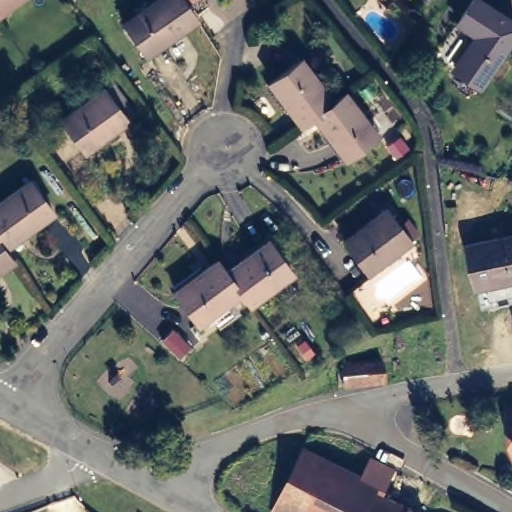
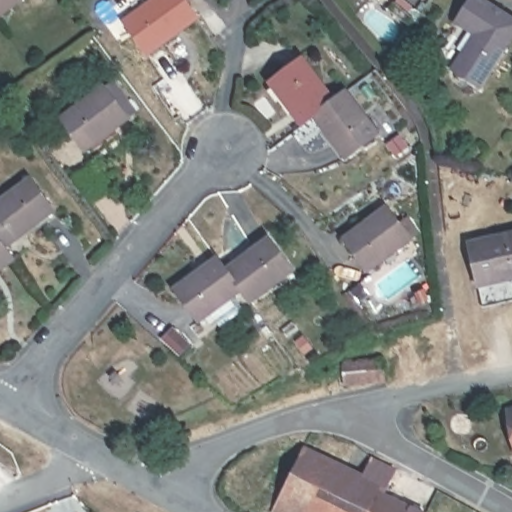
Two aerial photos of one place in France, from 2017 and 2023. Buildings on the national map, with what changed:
unchanged [(0,0),(23,0),(0,16),(0,0)]
unchanged [(130,20),(155,0),(191,0),(203,18),(155,52),(130,20)]
unchanged [(482,32),(462,17),(474,0),(489,0),(512,15),(512,35),(481,81),(458,67),(482,32)]
unchanged [(272,83),(305,60),(335,101),(314,119),(303,126),(272,83)]
unchanged [(65,117),(108,86),(132,119),(90,149),(65,117)]
unchanged [(381,134),(344,159),(314,119),(335,101),(350,91),(381,134)]
unchanged [(53,212),(5,246),(0,240),(0,203),(32,181),(53,212)]
unchanged [(390,214),(415,247),(373,276),(349,242),(390,214)]
unchanged [(512,227),(512,302),(485,307),(480,282),(470,237),(512,227)]
unchanged [(0,240),(5,246),(17,262),(0,273),(0,240)]
unchanged [(242,292),(226,270),(268,240),(293,275),(251,306),(242,292)]
unchanged [(242,292),(200,322),(175,288),(218,258),(226,270),(242,292)]
unchanged [(378,383),(340,386),(339,367),(377,364),(378,383)]
unchanged [(430,404),(432,435),(408,437),(407,407),(415,405),(430,404)]
unchanged [(510,409),(512,409),(512,422),(510,409)]
unchanged [(283,497),(265,489),(287,441),(305,451),(283,497)]
unchanged [(370,504),(367,512),(276,512),(283,497),(305,451),(337,467),(340,466),(364,478),(371,465),(386,472),(370,504)]
unchanged [(394,476),(383,502),(404,512),(367,512),(370,504),(386,472),(394,476)]

